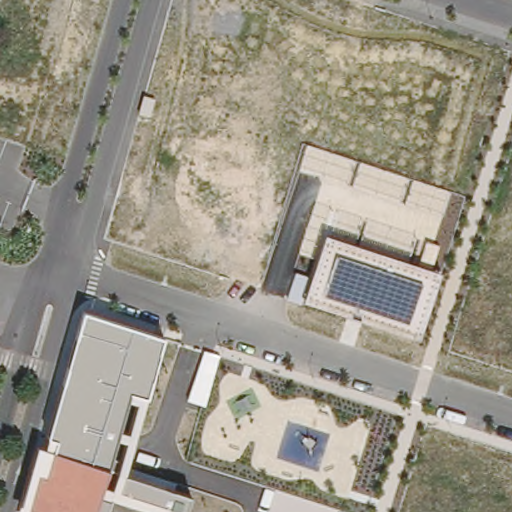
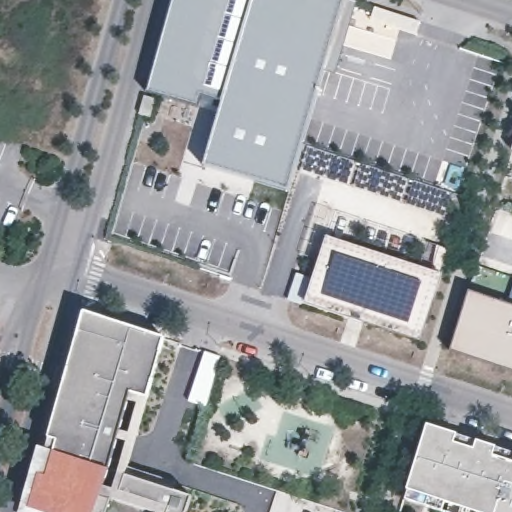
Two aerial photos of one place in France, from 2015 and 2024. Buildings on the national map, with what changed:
new [(171,0),(230,0),(202,97),(198,109),(146,92),(171,0)]
new [(222,103),(251,0),(346,0),(288,196),(201,168),(222,103)]
new [(230,0),(251,0),(222,103),(202,97),(230,0)]
unchanged [(287,301),(296,272),(313,276),(326,235),(442,274),(421,341),(303,303),(303,306),(287,301)]
new [(451,350),(470,292),(507,304),(512,287),(512,370),(451,350)]
unchanged [(44,449),(82,313),(163,338),(124,475),(191,497),(186,512),(19,512),(37,447),(44,449)]
new [(207,349),(222,354),(208,403),(191,398),(207,349)]
new [(456,447),(472,452),(475,442),(493,447),(490,459),(512,466),(512,512),(442,512),(405,500),(426,427),(459,437),(456,447)]

